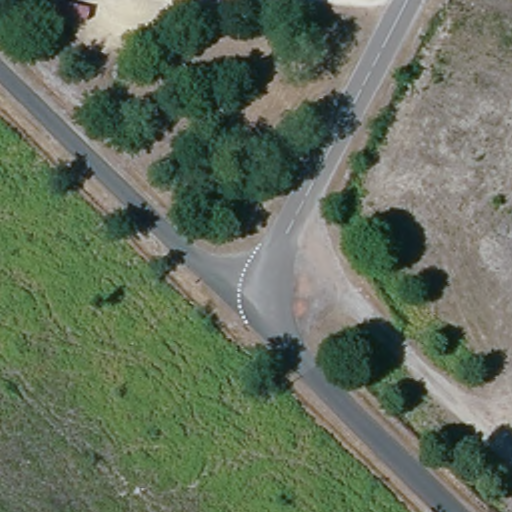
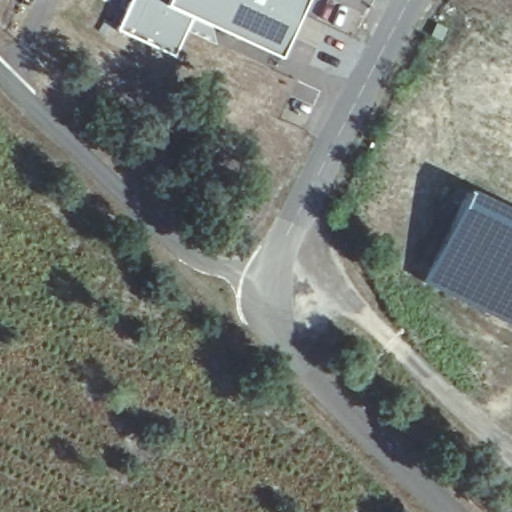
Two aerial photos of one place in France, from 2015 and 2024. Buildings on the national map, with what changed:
new [(190,16),(174,56),(117,30),(131,0),(307,0),(280,57),(190,16)]
new [(441,239),(466,188),(512,210),(512,325),(469,303),(422,282),(441,239)]

